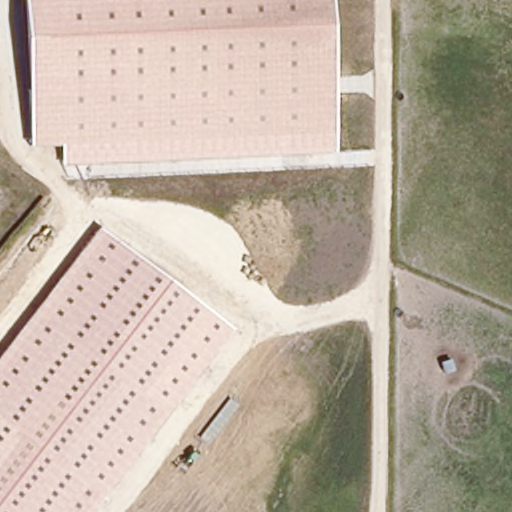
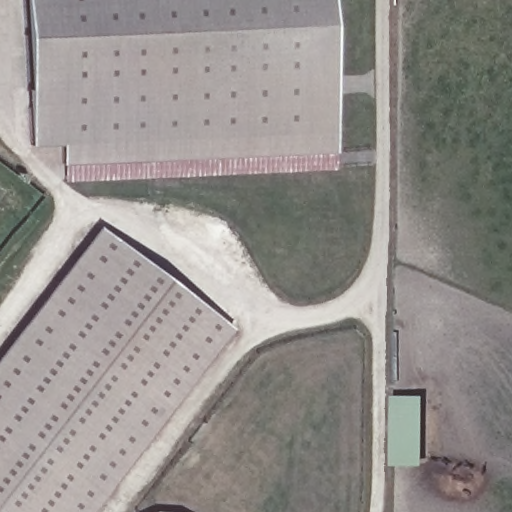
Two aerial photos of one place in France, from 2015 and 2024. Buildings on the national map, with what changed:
unchanged [(64,166),(64,144),(31,145),(24,0),(325,0),(333,151),(64,166)]
unchanged [(91,512),(0,512),(0,355),(98,227),(231,327),(91,512)]
new [(424,396),(423,466),(390,466),(391,396),(424,396)]

